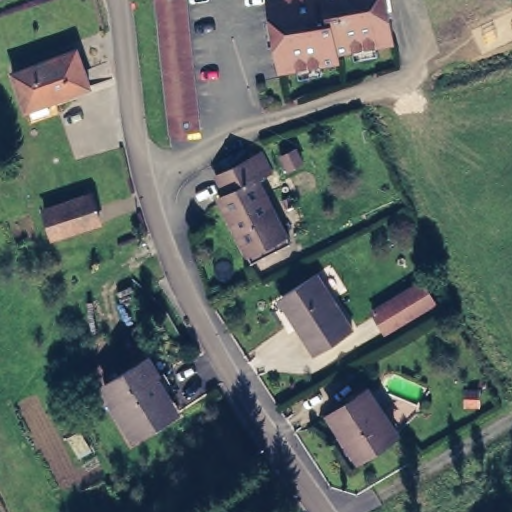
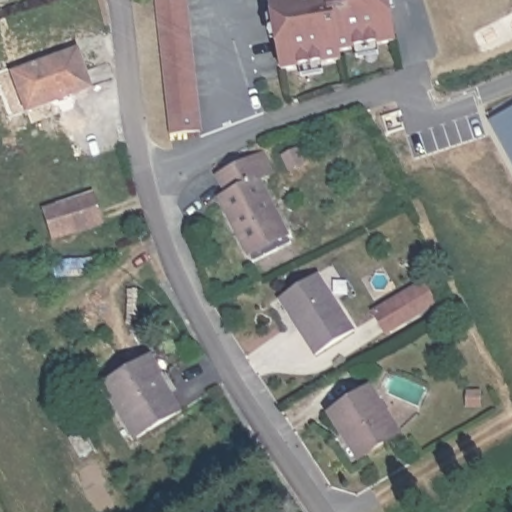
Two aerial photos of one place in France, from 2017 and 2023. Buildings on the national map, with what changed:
unchanged [(175,0),(191,138),(159,142),(145,5),(175,0)]
unchanged [(286,83),(285,74),(269,76),(255,0),(372,0),(381,48),(364,51),(365,61),(343,65),(342,56),(326,59),(327,66),(308,69),(310,78),(286,83)]
unchanged [(80,44),(94,83),(59,95),(62,107),(35,117),(17,67),(80,44)]
new [(512,109),(512,163),(489,122),(512,109)]
unchanged [(257,155),(267,176),(256,181),(287,245),(249,263),(217,199),(223,196),(213,177),(257,155)]
unchanged [(88,191),(97,221),(60,232),(50,235),(42,205),(49,203),(88,191)]
unchanged [(312,276),(350,332),(312,357),(295,330),(299,327),(280,297),(312,276)]
unchanged [(426,285),(437,304),(388,333),(377,314),(426,285)]
unchanged [(145,359),(157,378),(150,382),(172,415),(134,438),(102,387),(145,359)]
unchanged [(365,386),(394,431),(360,453),(347,435),(344,437),(327,409),(365,386)]
unchanged [(464,393),(474,394),(473,408),(463,407),(464,393)]

